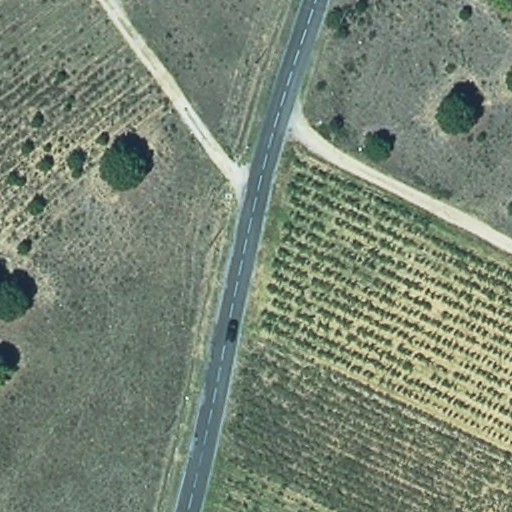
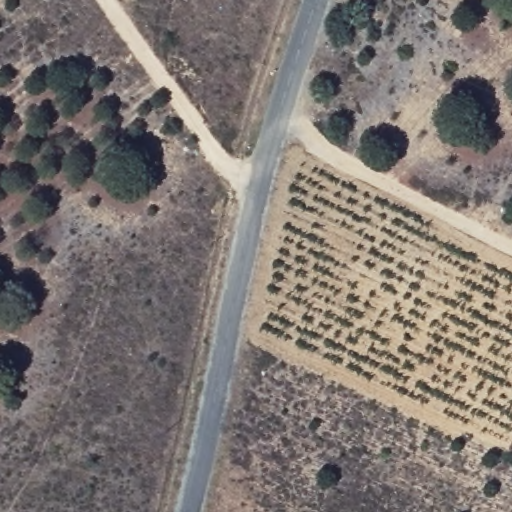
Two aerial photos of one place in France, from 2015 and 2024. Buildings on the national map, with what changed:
[]

